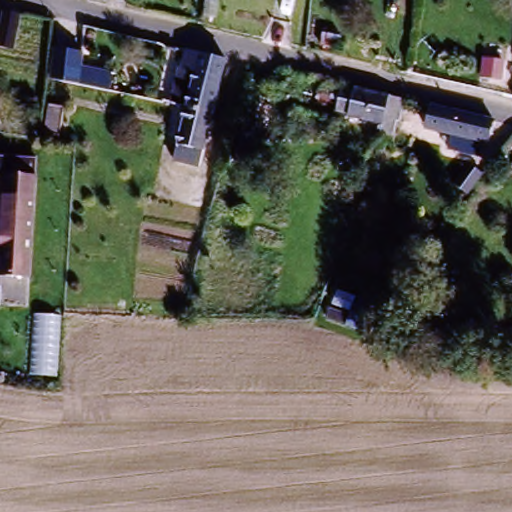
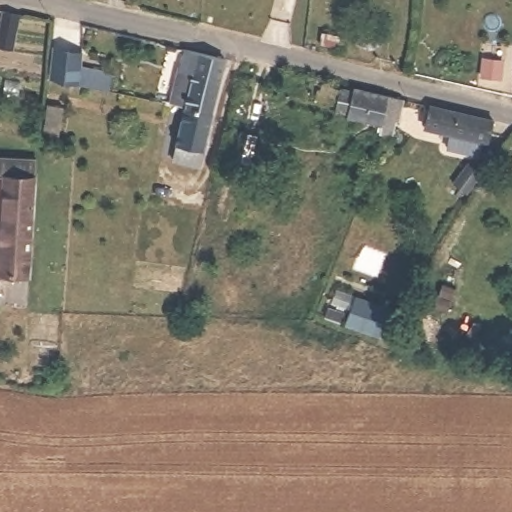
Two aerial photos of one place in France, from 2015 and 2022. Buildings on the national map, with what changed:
unchanged [(10,49),(0,49),(0,13),(18,15),(10,49)]
unchanged [(120,86),(57,70),(62,49),(86,55),(84,65),(122,76),(120,86)]
unchanged [(187,107),(172,103),(182,50),(227,59),(209,151),(194,149),(192,161),(175,158),(187,107)]
unchanged [(381,140),(367,138),(371,123),(334,114),(335,109),(324,105),(328,90),(337,93),(340,86),(396,100),(387,129),(381,140)]
unchanged [(441,155),(445,136),(423,132),(431,107),(492,119),(486,142),(476,141),(471,160),(441,155)]
unchanged [(67,135),(52,133),(56,109),(69,110),(67,135)]
unchanged [(0,295),(0,195),(1,178),(0,178),(0,155),(34,158),(34,178),(30,274),(27,308),(2,306),(0,295)]
unchanged [(361,333),(374,305),(393,316),(381,341),(361,333)]

